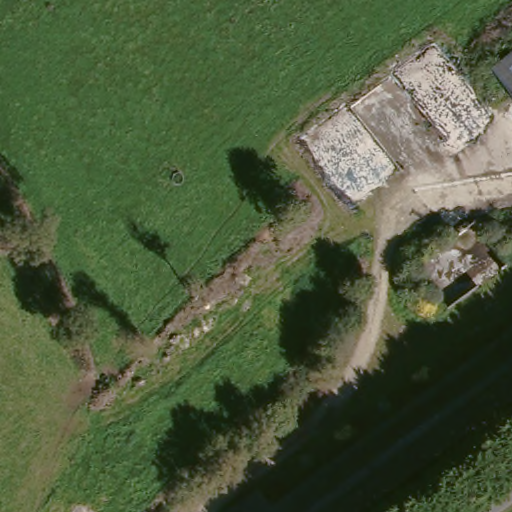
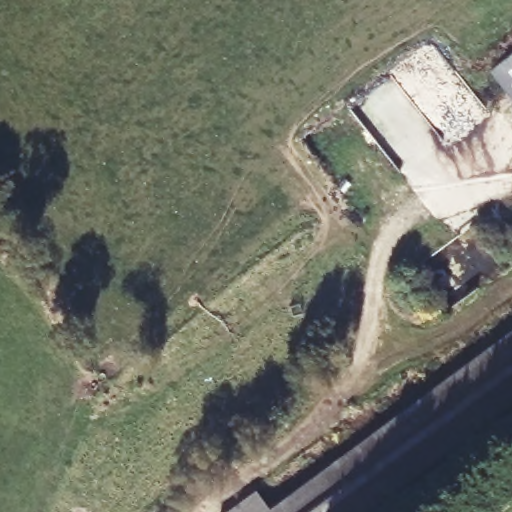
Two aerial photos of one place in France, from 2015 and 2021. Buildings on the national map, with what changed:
unchanged [(512,62),(512,107),(491,79),(512,62)]
unchanged [(271,486),(286,506),(512,343),(512,405),(366,512),(234,512),(271,486)]

